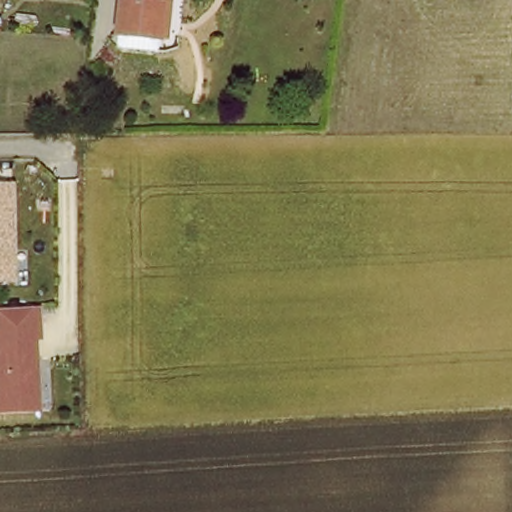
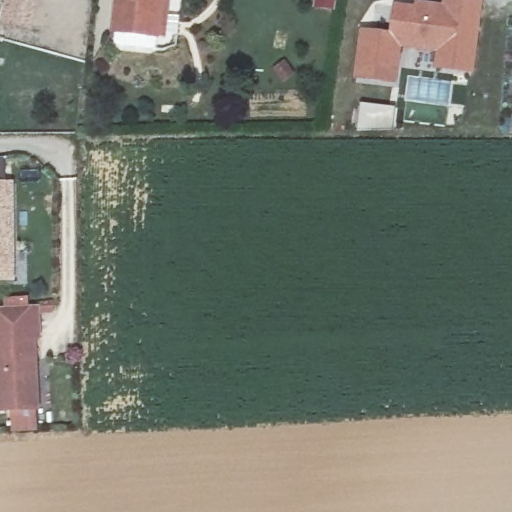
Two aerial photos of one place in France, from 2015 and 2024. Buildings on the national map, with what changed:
new [(41,0),(33,31),(2,22),(8,0),(41,0)]
unchanged [(155,42),(115,37),(117,0),(168,0),(167,44),(155,42)]
new [(392,34),(398,3),(417,6),(418,1),(445,5),(446,0),(485,0),(474,76),(435,71),(437,55),(405,51),(398,86),(355,80),(363,30),(392,34)]
unchanged [(0,281),(0,184),(13,185),(13,267),(13,281),(0,281)]
unchanged [(18,415),(0,416),(0,312),(36,310),(37,341),(32,341),(34,370),(27,371),(28,378),(35,385),(36,399),(37,414),(18,415)]

